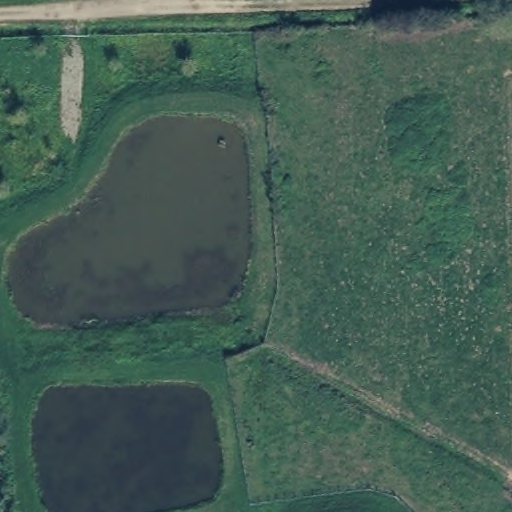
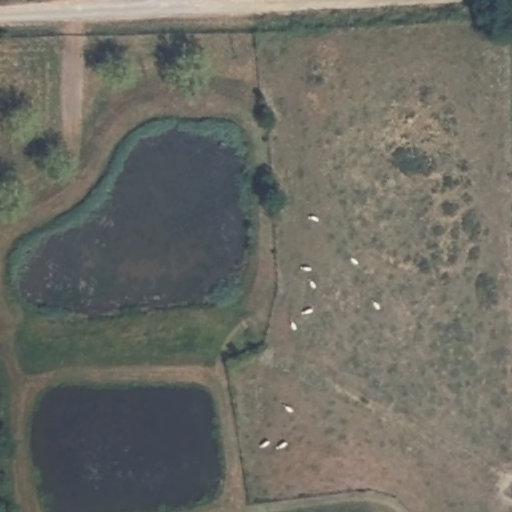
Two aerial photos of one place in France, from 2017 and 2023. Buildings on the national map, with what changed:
[]

